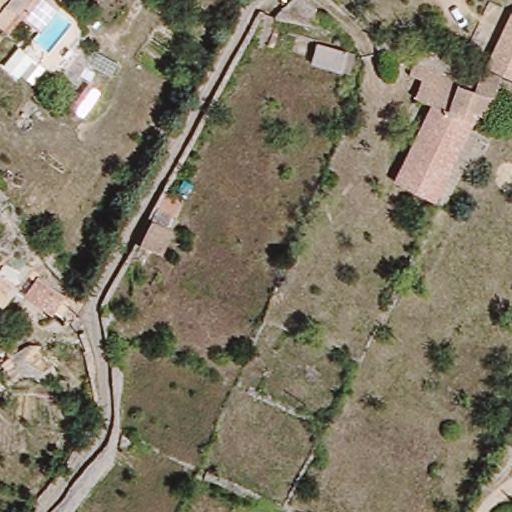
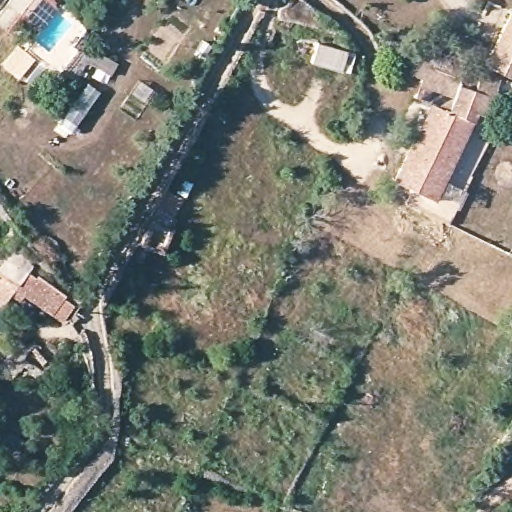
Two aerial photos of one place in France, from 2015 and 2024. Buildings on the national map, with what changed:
unchanged [(20,16),(5,6),(9,0),(31,0),(20,16)]
unchanged [(87,25),(59,74),(48,68),(33,87),(20,80),(33,59),(24,50),(31,38),(46,51),(66,29),(52,20),(43,31),(20,16),(31,0),(55,0),(87,25)]
unchanged [(512,8),(512,78),(503,75),(482,64),(507,10),(512,8)]
unchanged [(322,39),(353,48),(346,68),(316,58),(322,39)]
unchanged [(429,75),(435,62),(438,56),(469,68),(468,75),(454,100),(433,92),(438,78),(429,75)]
unchanged [(503,75),(501,85),(485,115),(454,100),(468,75),(478,78),(484,67),(503,75)]
unchanged [(472,120),(434,198),(397,180),(419,130),(429,135),(442,106),(472,120)]
unchanged [(168,228),(172,229),(160,253),(138,245),(151,219),(168,228)]
unchanged [(31,270),(4,309),(0,306),(0,267),(10,254),(31,270)]
unchanged [(68,285),(55,305),(26,287),(39,267),(68,285)]

